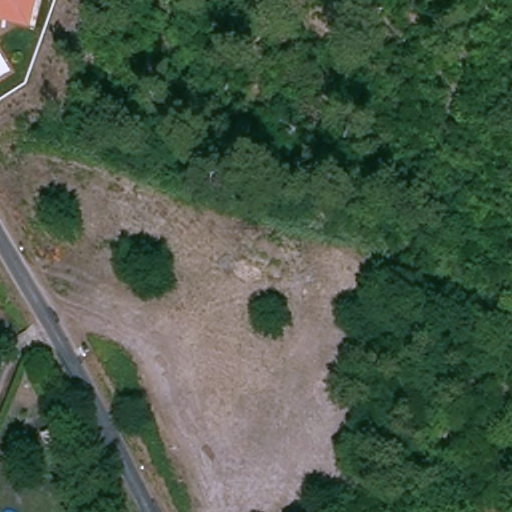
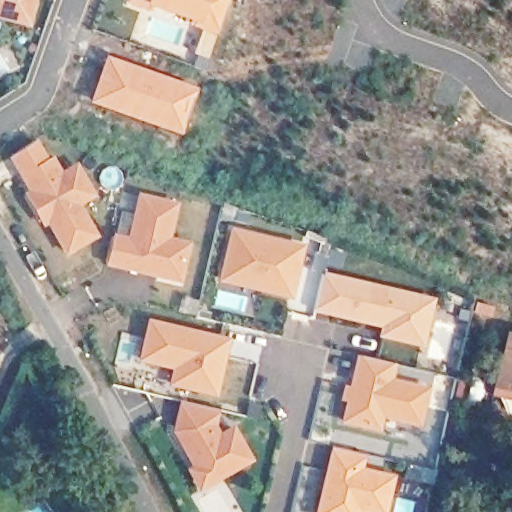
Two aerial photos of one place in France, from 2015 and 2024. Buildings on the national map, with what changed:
unchanged [(0,19),(0,0),(36,0),(29,27),(0,19)]
new [(204,71),(190,65),(201,30),(146,6),(144,10),(123,2),(124,0),(229,0),(204,71)]
new [(105,54),(197,88),(180,135),(88,102),(105,54)]
new [(18,160),(41,145),(55,166),(60,163),(69,179),(84,169),(102,197),(87,206),(106,237),(78,255),(58,223),(53,226),(37,200),(42,197),(18,160)]
new [(166,280),(114,267),(120,240),(137,245),(147,200),(183,209),(175,244),(195,249),(189,275),(187,284),(166,280)]
new [(218,281),(230,226),(306,245),(292,299),(218,281)]
new [(435,298),(423,347),(377,337),(379,327),(314,312),(323,272),(435,298)]
new [(231,338),(217,396),(166,385),(170,370),(137,362),(147,318),(231,338)]
new [(396,363),(394,377),(430,386),(421,428),(383,420),(381,432),(340,423),(344,401),(339,401),(343,383),(349,385),(356,356),(396,363)]
new [(512,398),(505,396),(509,381),(512,367),(512,398)]
new [(220,409),(216,426),(220,433),(235,425),(255,460),(198,491),(185,469),(191,465),(171,431),(180,400),(220,409)]
new [(363,467),(394,475),(386,512),(315,512),(330,446),(366,455),(363,467)]

